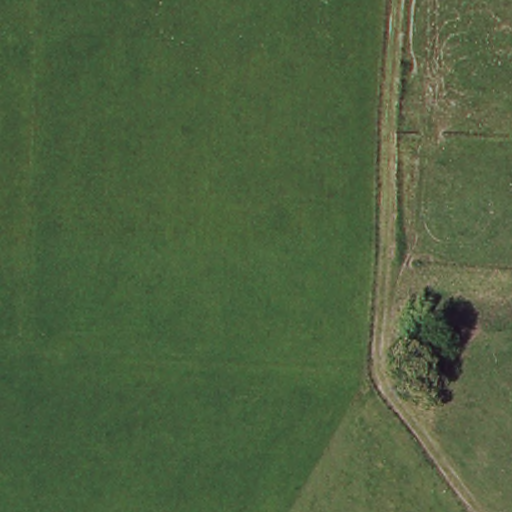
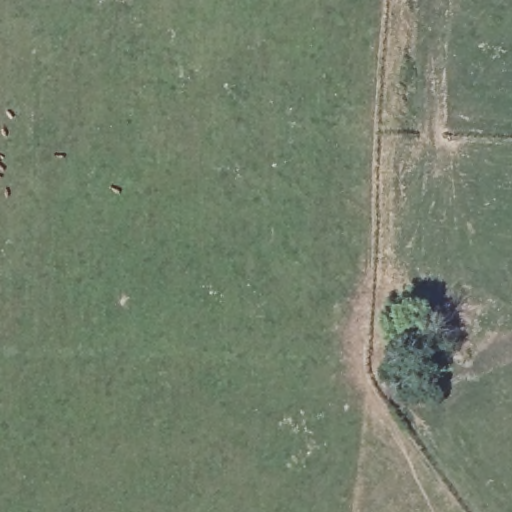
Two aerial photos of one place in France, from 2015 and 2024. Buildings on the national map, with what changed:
[]

